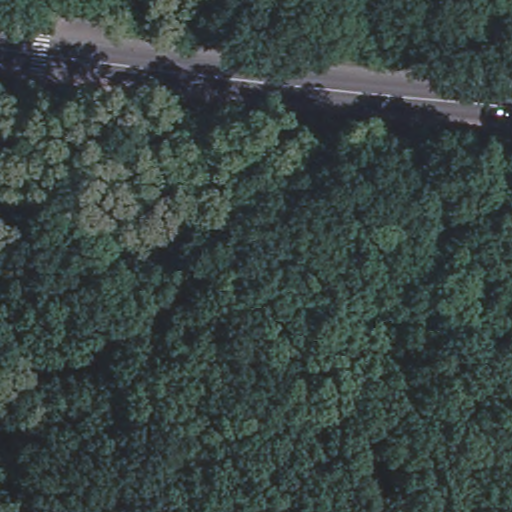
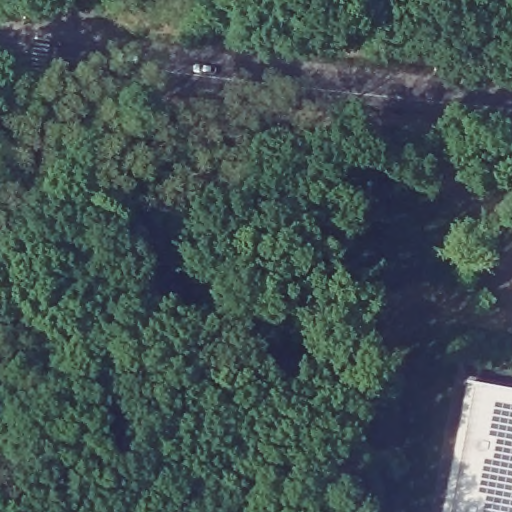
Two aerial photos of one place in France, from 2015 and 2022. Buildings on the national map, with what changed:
new [(512,394),(512,512),(444,512),(466,386),(512,394)]

